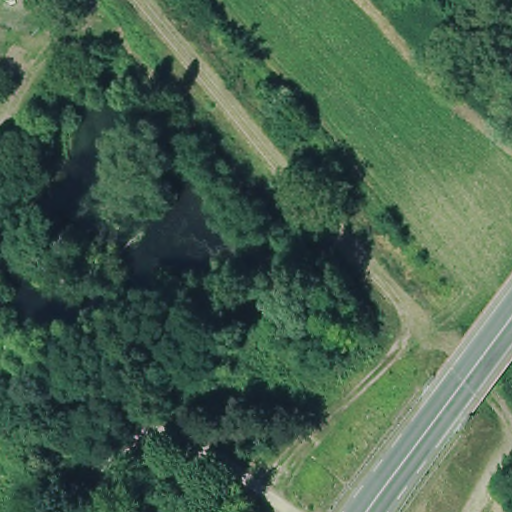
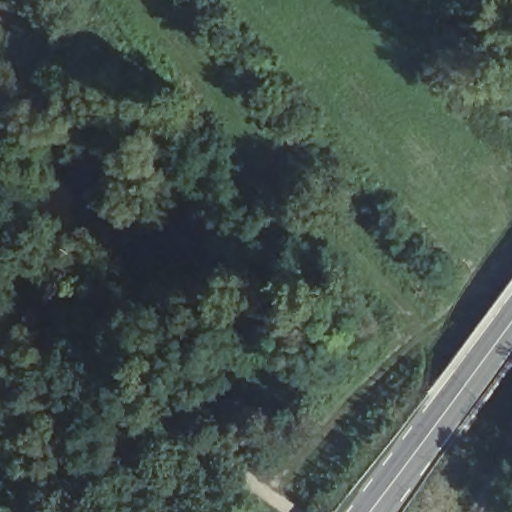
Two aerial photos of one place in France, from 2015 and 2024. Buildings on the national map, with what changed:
unchanged [(63,0),(64,0),(89,0),(88,3),(63,0)]

